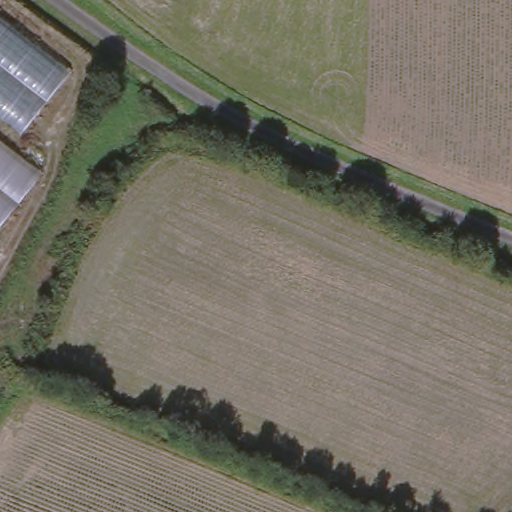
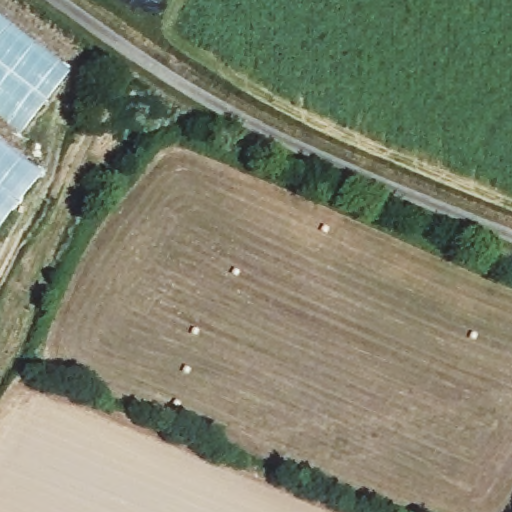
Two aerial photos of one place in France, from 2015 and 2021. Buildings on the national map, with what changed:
unchanged [(25,129),(0,110),(0,12),(71,67),(25,129)]
unchanged [(0,211),(0,160),(22,179),(0,211)]

